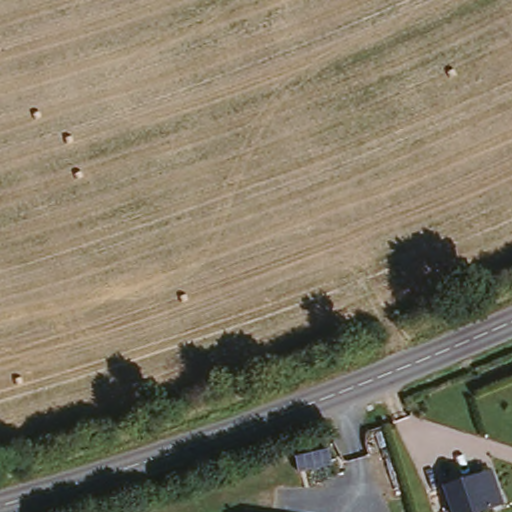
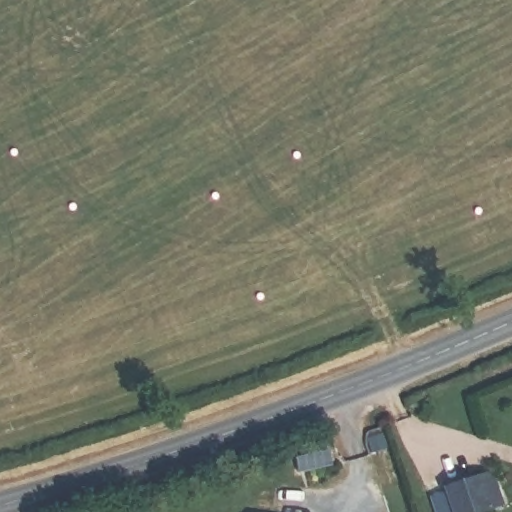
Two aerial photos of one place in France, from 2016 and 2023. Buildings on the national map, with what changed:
unchanged [(486,512),(444,512),(435,487),(482,472),(489,468),(501,506),(494,510),(486,512)]

